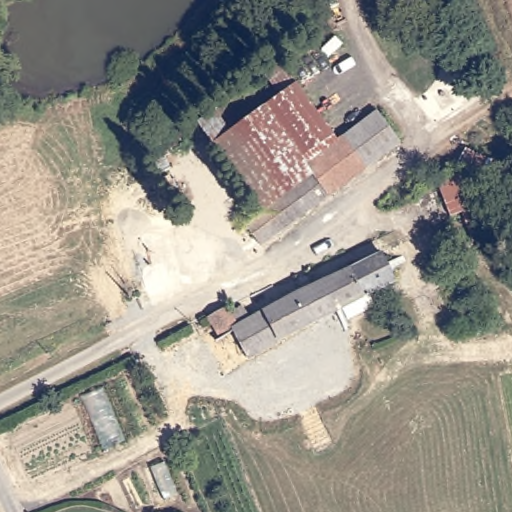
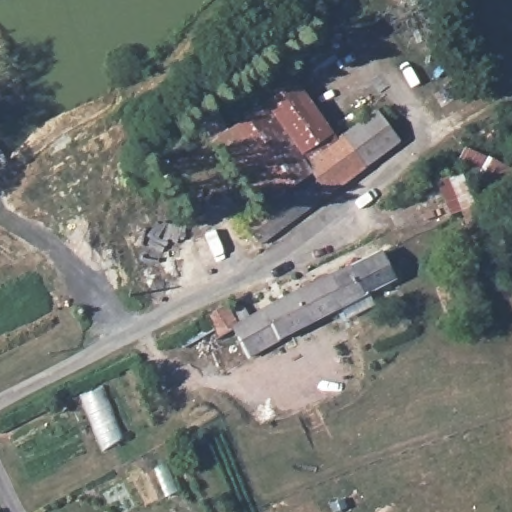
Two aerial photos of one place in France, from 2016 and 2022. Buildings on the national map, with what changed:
unchanged [(204,125),(286,65),(325,119),(339,137),(344,143),(310,168),(315,177),(268,212),(204,125)]
unchanged [(366,89),(380,107),(339,137),(325,119),(366,89)]
unchanged [(251,225),(268,212),(315,177),(310,168),(344,143),(384,114),(407,146),(268,249),(251,225)]
unchanged [(180,125),(190,140),(156,160),(146,145),(180,125)]
unchanged [(464,145),(508,165),(512,168),(512,185),(507,194),(497,187),(455,162),(464,145)]
unchanged [(462,171),(474,206),(482,204),(492,232),(472,239),(462,210),(450,214),(438,179),(462,171)]
unchanged [(223,340),(225,338),(214,315),(233,306),(236,313),(247,307),(253,310),(259,317),(308,287),(386,250),(401,280),(378,290),(384,302),(355,317),(349,305),(311,323),(254,357),(238,368),(223,340)]

